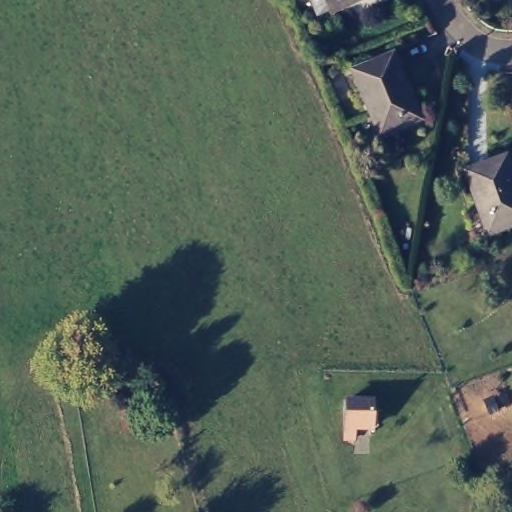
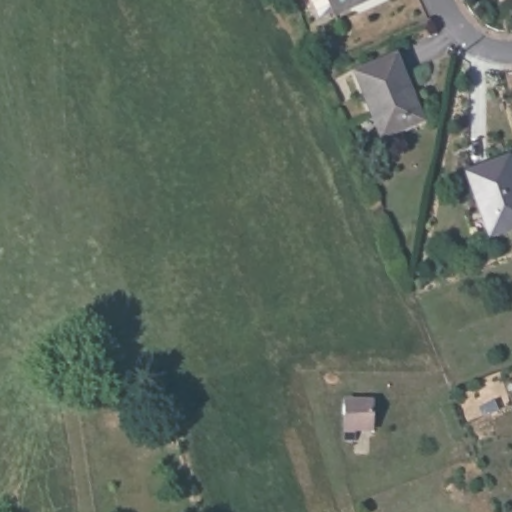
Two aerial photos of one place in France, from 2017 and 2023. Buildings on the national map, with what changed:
unchanged [(321,0),(342,0),(325,8),(321,0)]
unchanged [(382,104),(378,106),(360,63),(397,47),(414,89),(417,87),(427,111),(390,126),(382,104)]
unchanged [(468,163),(509,148),(512,158),(512,218),(490,225),(468,163)]
unchanged [(372,402),(370,429),(345,429),(346,401),(372,402)]

